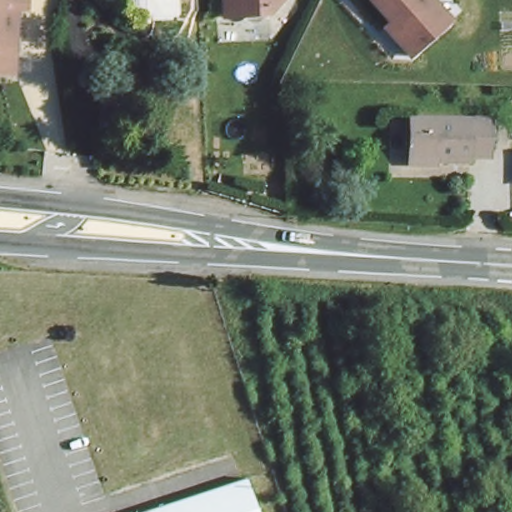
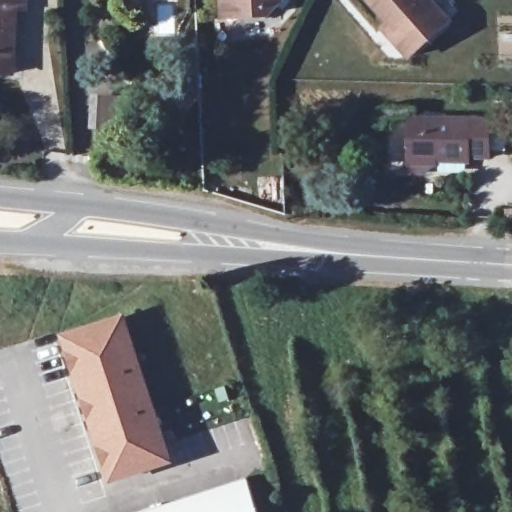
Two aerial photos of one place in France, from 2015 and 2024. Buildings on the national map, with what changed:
unchanged [(0,0),(20,0),(20,9),(10,8),(8,49),(7,74),(0,73),(0,0)]
unchanged [(221,0),(275,0),(274,1),(267,2),(267,9),(242,11),(222,12),(222,2),(221,0)]
unchanged [(410,52),(393,35),(399,30),(370,0),(427,0),(445,19),(410,52)]
unchanged [(410,163),(411,152),(413,115),(496,122),(495,157),(473,156),(468,162),(440,160),(437,165),(410,163)]
new [(119,317),(165,460),(107,480),(60,336),(119,317)]
unchanged [(244,480),(254,512),(151,512),(244,480)]

